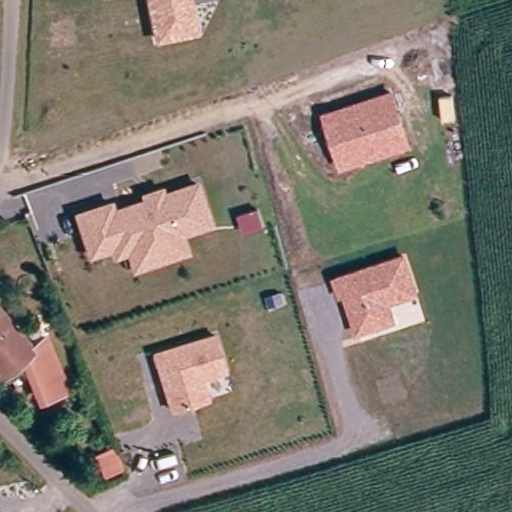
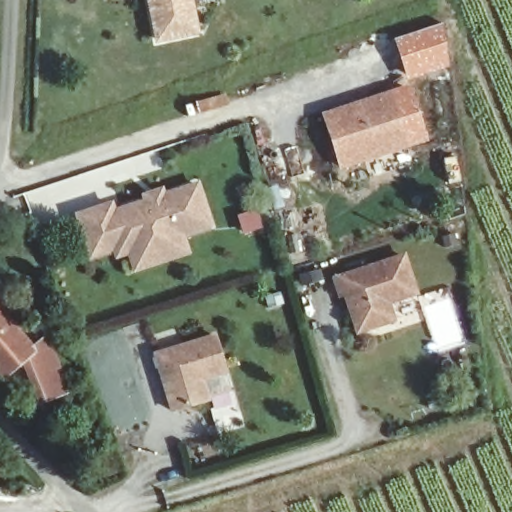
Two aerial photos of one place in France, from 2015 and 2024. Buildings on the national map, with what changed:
unchanged [(157,38),(150,0),(190,0),(196,30),(157,38)]
new [(442,22),(453,65),(405,80),(392,38),(442,22)]
unchanged [(391,89),(413,147),(340,171),(321,114),(391,89)]
unchanged [(140,271),(135,253),(122,257),(120,249),(96,257),(84,216),(100,211),(115,206),(117,214),(151,202),(150,197),(167,192),(169,197),(202,186),(215,226),(185,236),(191,254),(140,271)]
unchanged [(404,253),(418,296),(392,305),(398,323),(355,337),(344,298),(337,300),(331,278),(404,253)]
unchanged [(61,391),(55,393),(39,401),(20,358),(0,376),(0,315),(29,349),(34,347),(40,344),(61,391)]
unchanged [(215,332),(230,375),(204,383),(210,402),(170,415),(151,353),(215,332)]

